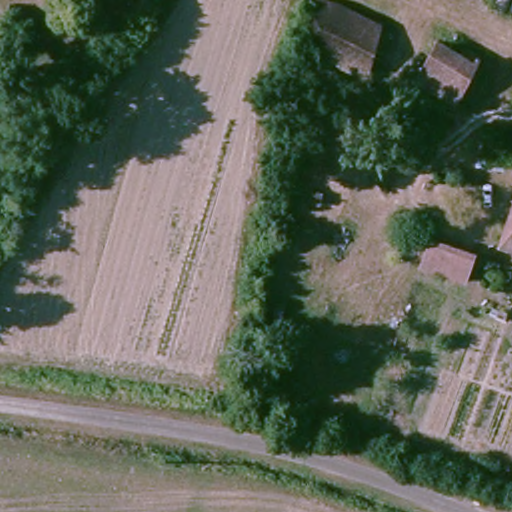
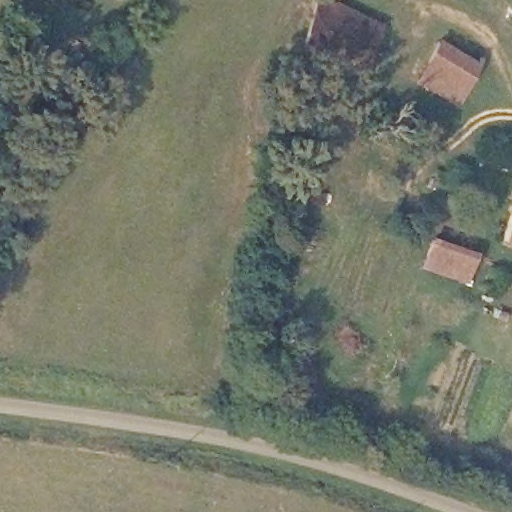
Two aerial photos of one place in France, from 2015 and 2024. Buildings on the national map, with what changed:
unchanged [(319,0),(329,0),(380,15),(366,64),(306,47),(319,0)]
unchanged [(441,40),(482,60),(459,105),(418,84),(441,40)]
unchanged [(489,156),(463,152),(467,126),(493,131),(489,156)]
unchanged [(506,243),(512,221),(512,245),(506,243)]
unchanged [(435,236),(474,248),(466,276),(426,265),(435,236)]

